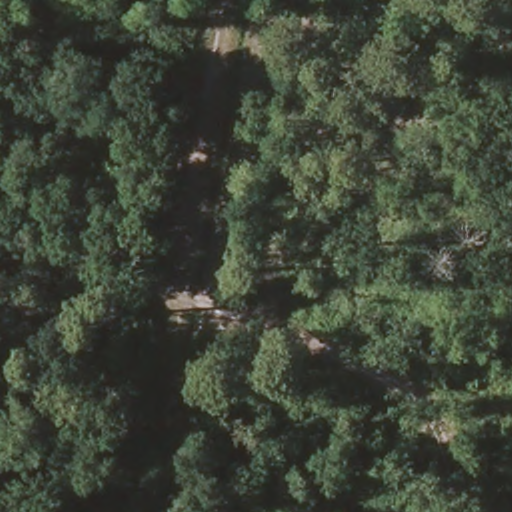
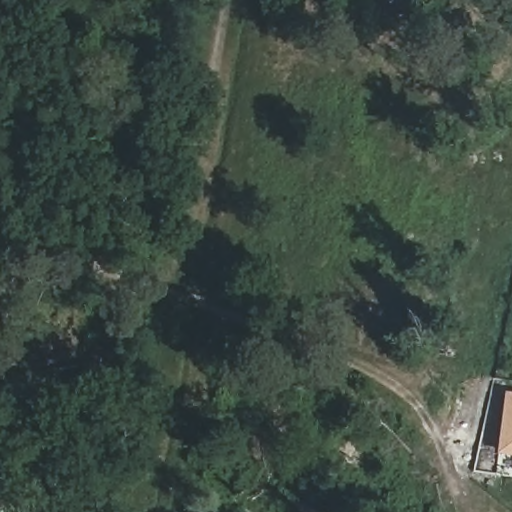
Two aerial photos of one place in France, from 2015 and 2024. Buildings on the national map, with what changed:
new [(500,397),(512,399),(512,456),(492,454),(500,397)]

